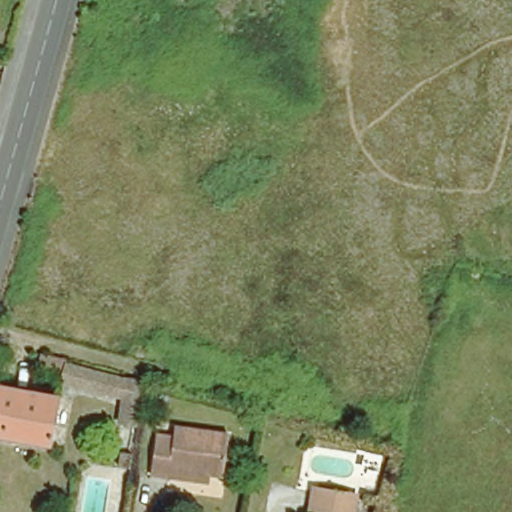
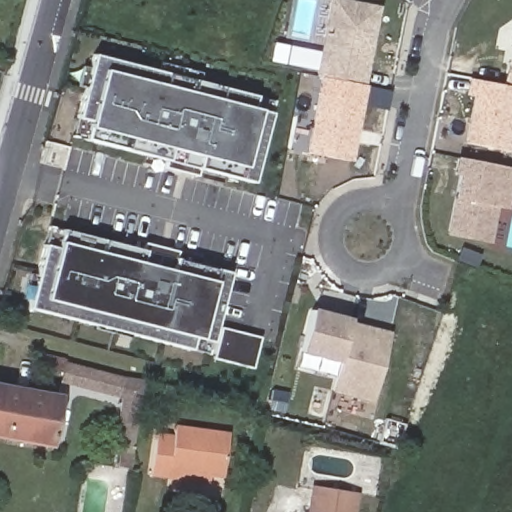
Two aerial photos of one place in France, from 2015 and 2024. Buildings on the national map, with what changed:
new [(337,0),(376,8),(361,85),(320,77),(314,76),(329,0),(337,0)]
new [(511,31),(512,32),(512,88),(500,86),(511,31)]
new [(162,169),(165,161),(83,140),(71,137),(76,117),(88,71),(250,112),(269,116),(266,129),(252,183),(198,169),(196,177),(162,169)]
new [(320,77),(361,85),(362,85),(347,162),(305,154),(320,77)]
new [(472,97),(464,96),(467,80),(500,86),(512,88),(512,129),(507,153),(462,144),(472,97)]
new [(456,177),(451,176),(454,159),(509,170),(502,208),(492,206),(485,241),(445,233),(456,177)]
new [(29,306),(45,242),(50,224),(61,227),(143,248),(145,240),(178,249),(177,256),(230,270),(213,340),(210,352),(191,347),(29,306)]
new [(305,310),(344,320),(343,323),(333,361),(295,351),(305,310)]
new [(333,361),(343,323),(384,333),(367,401),(326,391),(333,361)]
new [(222,325),(262,335),(254,366),(214,356),(222,325)]
unchanged [(141,401),(139,418),(138,424),(119,422),(123,396),(61,379),(64,371),(39,364),(41,354),(67,361),(67,363),(144,385),(141,401)]
unchanged [(49,443),(0,434),(0,385),(58,397),(49,443)]
unchanged [(153,479),(154,472),(158,438),(173,440),(175,429),(228,436),(223,481),(210,479),(209,487),(153,479)]
unchanged [(131,469),(131,471),(119,469),(121,454),(133,456),(131,469)]
unchanged [(316,485),(354,491),(364,492),(361,512),(311,512),(316,485)]

